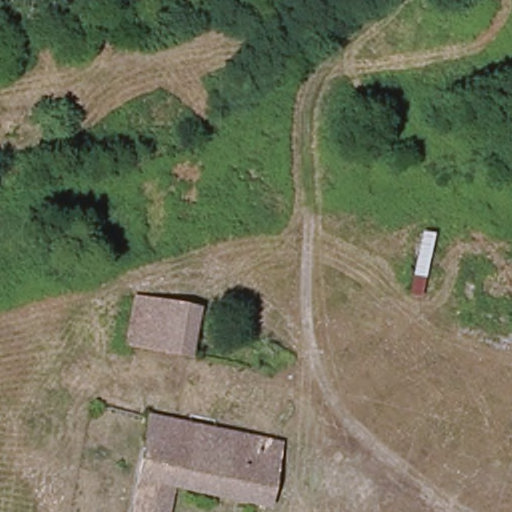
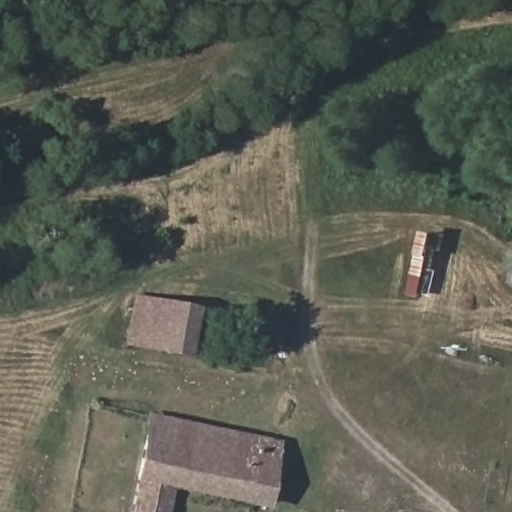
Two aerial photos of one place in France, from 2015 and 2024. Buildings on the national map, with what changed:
unchanged [(138,345),(149,299),(185,307),(175,352),(138,345)]
unchanged [(182,491),(177,512),(134,512),(153,422),(282,450),(268,508),(182,491)]

